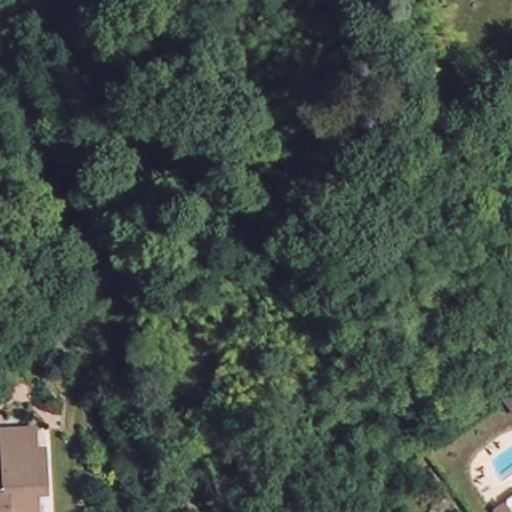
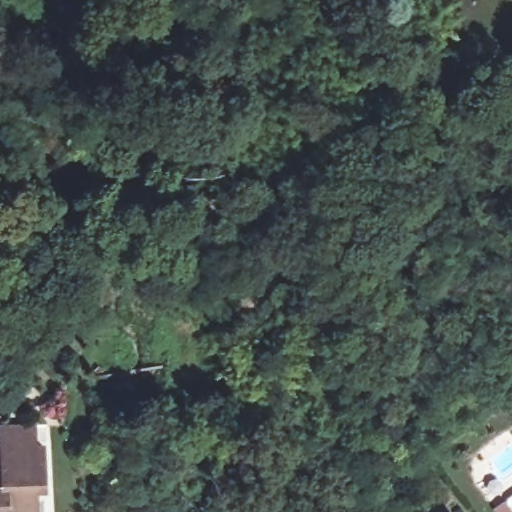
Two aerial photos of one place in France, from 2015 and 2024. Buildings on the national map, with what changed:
unchanged [(4,443),(4,423),(36,421),(38,442),(46,442),(48,478),(46,484),(38,487),(39,512),(0,512),(0,443),(4,443)]
unchanged [(377,486),(385,497),(364,512),(345,512),(344,510),(377,486)]

